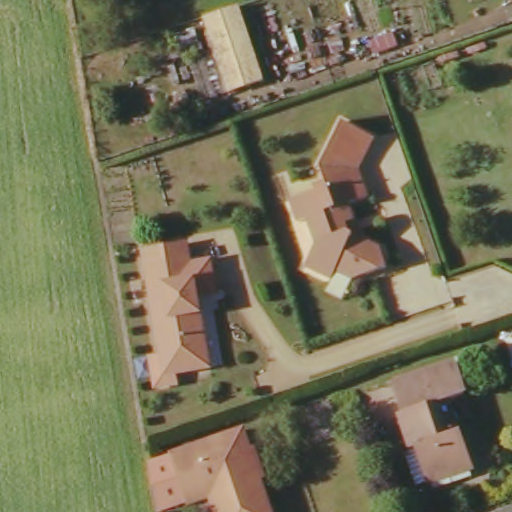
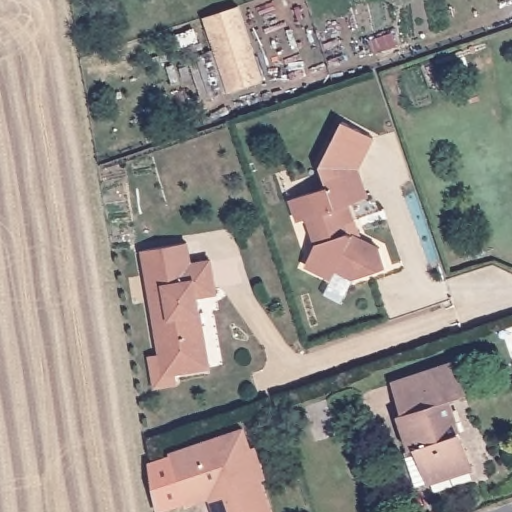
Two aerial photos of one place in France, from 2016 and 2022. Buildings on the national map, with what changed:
unchanged [(258,80),(225,91),(198,15),(234,4),(258,80)]
unchanged [(341,299),(325,290),(330,281),(303,265),(313,244),(306,218),(296,220),(290,197),(310,191),(308,184),(321,180),(317,168),(338,122),(370,137),(356,169),(365,197),(347,202),(350,212),(360,239),(378,247),(383,267),(350,278),(351,282),(341,299)]
unchanged [(152,389),(148,358),(158,357),(141,251),(187,244),(190,265),(210,262),(212,287),(196,289),(202,334),(198,335),(203,370),(174,374),(175,387),(152,389)]
unchanged [(465,393),(447,398),(458,433),(468,465),(413,479),(406,452),(419,449),(418,444),(407,447),(397,413),(406,410),(396,380),(455,361),(465,393)]
unchanged [(185,505),(170,455),(245,432),(251,451),(242,454),(261,512),(213,512),(208,498),(185,505)]
unchanged [(261,512),(242,454),(251,451),(272,512),(261,512)]

